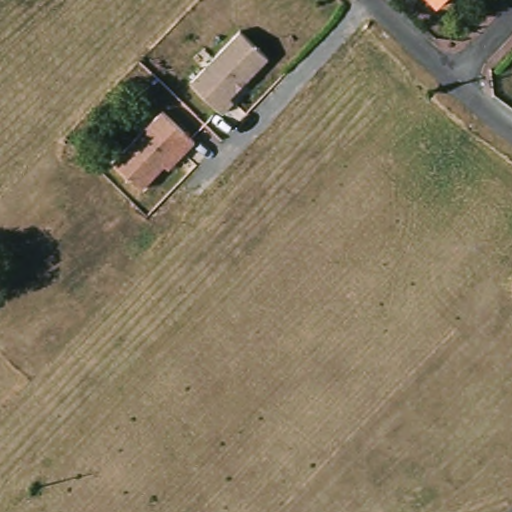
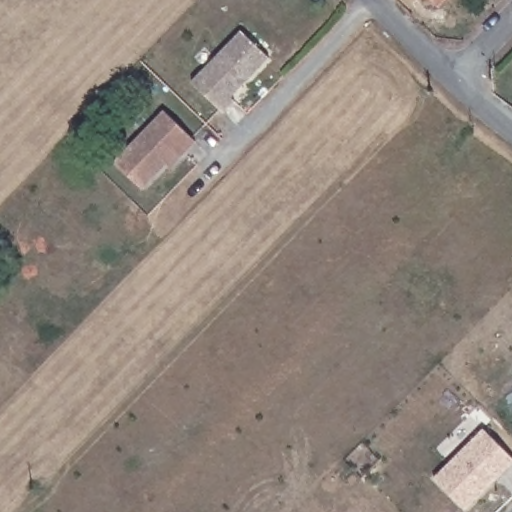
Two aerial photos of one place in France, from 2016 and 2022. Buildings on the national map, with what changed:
unchanged [(434,0),(446,0),(440,6),(434,0)]
unchanged [(267,59),(228,99),(244,115),(230,127),(187,85),(238,31),(267,59)]
unchanged [(197,145),(168,174),(164,170),(138,195),(107,164),(163,109),(197,145)]
new [(432,477),(482,428),(512,457),(512,464),(465,509),(432,477)]

